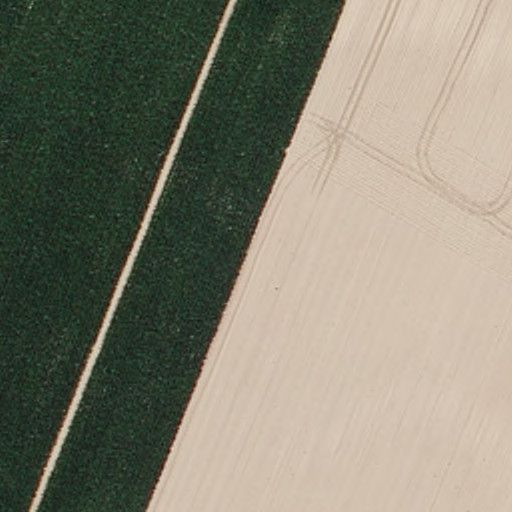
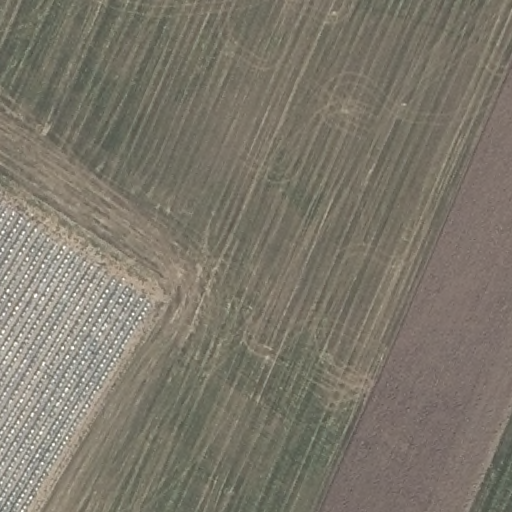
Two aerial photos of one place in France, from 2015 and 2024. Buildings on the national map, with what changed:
[]

